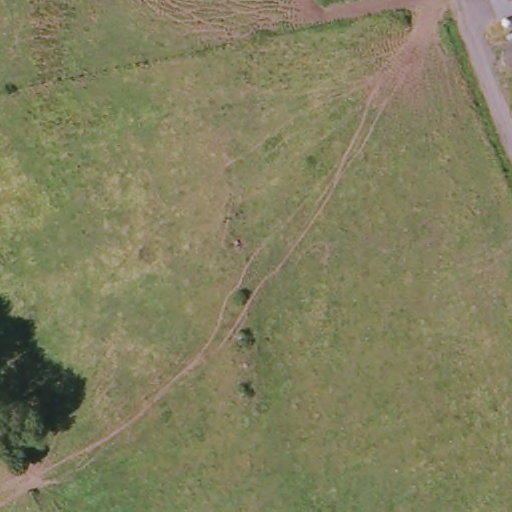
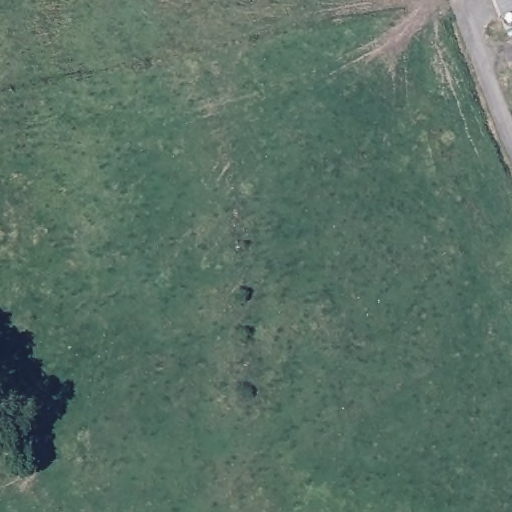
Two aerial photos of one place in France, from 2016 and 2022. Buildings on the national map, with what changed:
unchanged [(499,0),(512,0),(512,12),(505,15),(499,0)]

